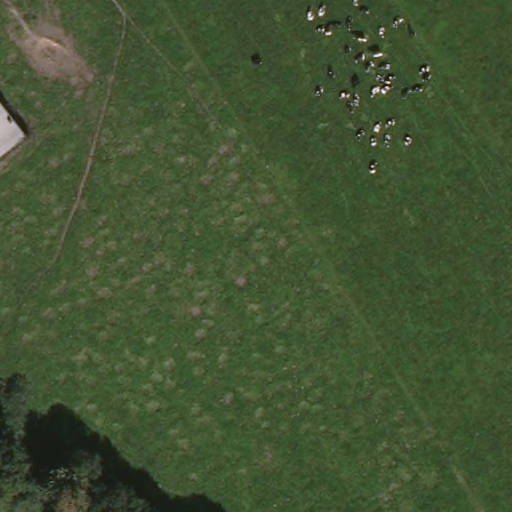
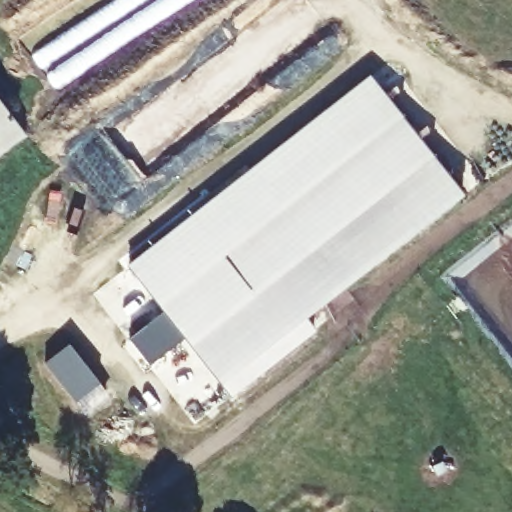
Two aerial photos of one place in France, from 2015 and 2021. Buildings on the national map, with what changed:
new [(462,197),(220,385),(126,268),(370,76),(462,197)]
unchanged [(31,126),(0,155),(0,92),(31,126)]

